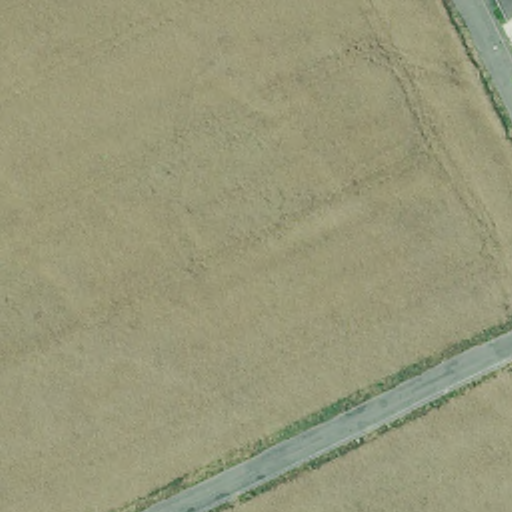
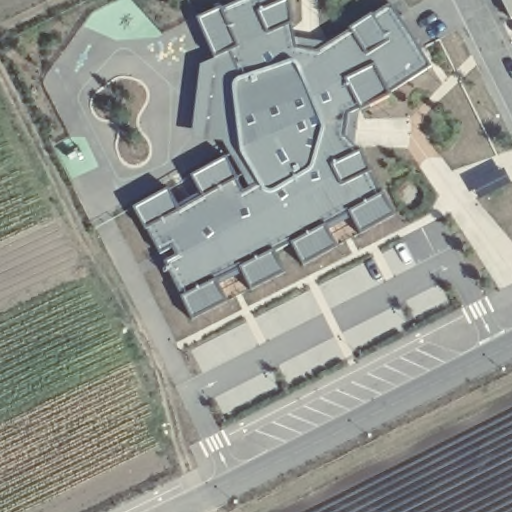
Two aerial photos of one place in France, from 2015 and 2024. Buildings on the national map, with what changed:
new [(232,84),(235,81),(240,78),(229,52),(214,59),(196,18),(222,7),(222,9),(241,0),(289,0),(294,24),(292,24),(297,48),(317,51),(350,30),(349,29),(372,14),(390,3),(432,66),(390,93),(391,95),(360,110),(360,109),(349,114),(345,136),(360,151),(360,150),(372,172),(370,172),(381,192),(383,192),(395,215),(360,234),(349,214),(327,227),(337,247),(303,266),(290,244),(275,252),(285,273),(250,290),(240,269),(217,282),(227,302),(192,320),(180,297),(181,297),(164,262),(199,245),(195,238),(160,254),(147,229),(145,230),(132,208),(168,188),(179,209),(202,196),(190,176),(226,156),(238,179),(237,180),(244,192),(258,183),(240,154),(240,152),(232,89),(232,84)]
unchanged [(512,0),(512,18),(507,21),(496,0),(512,0)]
new [(239,141),(205,137),(214,59),(229,52),(240,78),(235,80),(232,84),(232,89),(239,141)]

